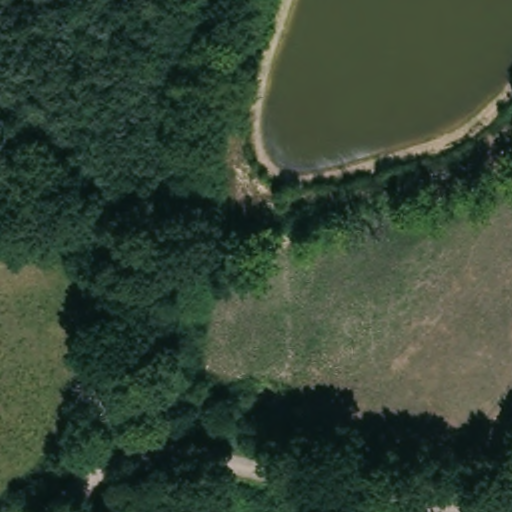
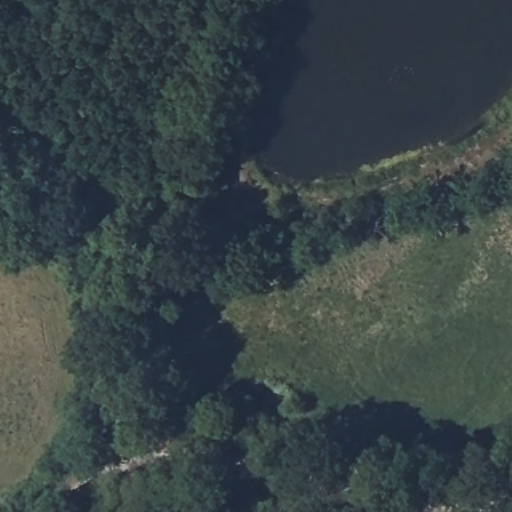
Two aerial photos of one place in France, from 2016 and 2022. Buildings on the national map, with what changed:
unchanged [(227,239),(224,252),(212,249),(214,237),(227,239)]

